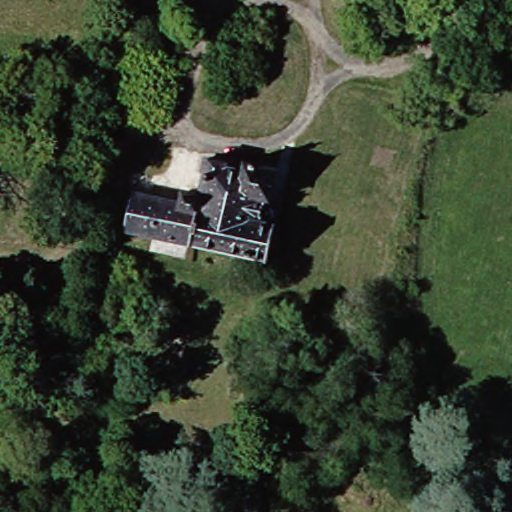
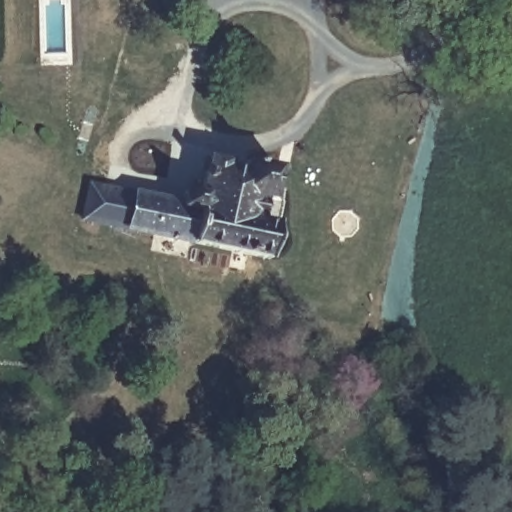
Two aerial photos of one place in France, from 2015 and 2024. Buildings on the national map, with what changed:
unchanged [(264,199),(257,200),(253,222),(266,224),(265,239),(269,239),(268,252),(260,252),(258,258),(114,226),(123,186),(170,195),(174,181),(191,185),(199,152),(222,157),(221,166),(243,171),(248,162),(269,169),(264,199)]
new [(122,189),(114,226),(79,221),(87,182),(122,189)]

